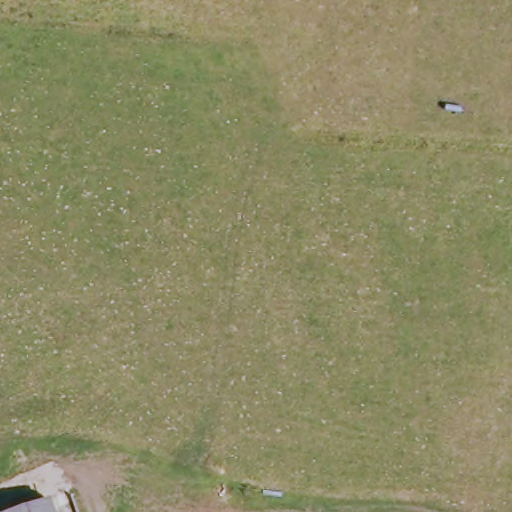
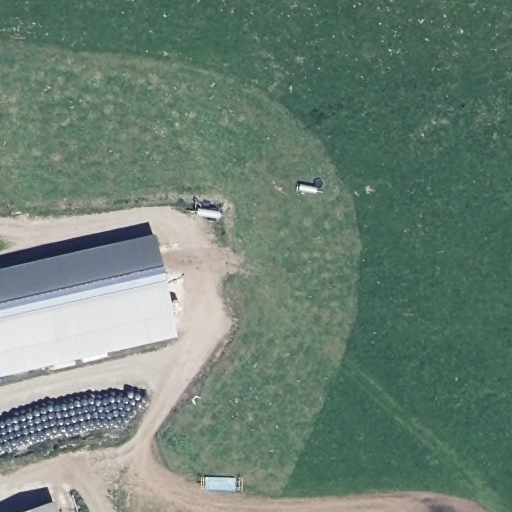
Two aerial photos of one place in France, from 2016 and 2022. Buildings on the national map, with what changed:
new [(154,235),(176,336),(0,375),(0,270),(154,235)]
unchanged [(54,512),(38,512),(52,507),(54,512)]

